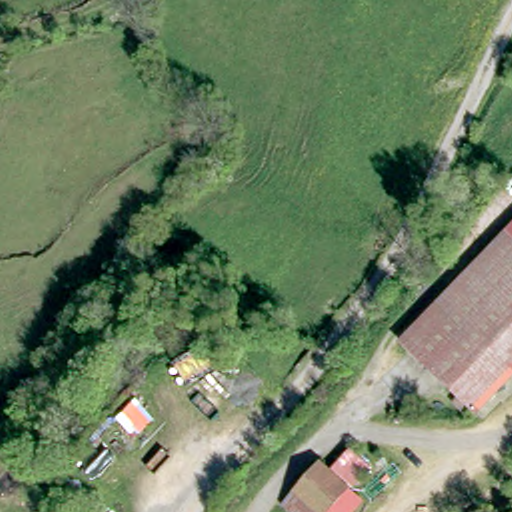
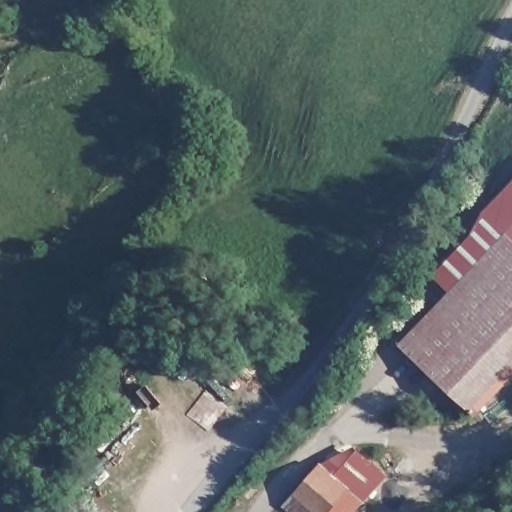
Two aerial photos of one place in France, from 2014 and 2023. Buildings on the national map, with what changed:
unchanged [(464,373),(429,323),(454,296),(432,273),(472,235),(483,210),(512,179),(512,374),(486,353),(464,373)]
unchanged [(452,386),(408,345),(429,323),(464,373),(452,386)]
unchanged [(512,374),(512,379),(508,383),(480,412),(461,394),(452,386),(464,373),(486,353),(512,374)]
unchanged [(289,509),(327,466),(339,477),(361,453),(375,467),(354,490),(333,512),(294,512),(289,509)]

